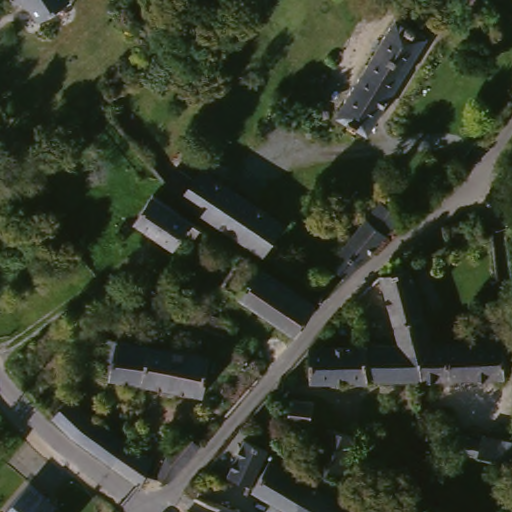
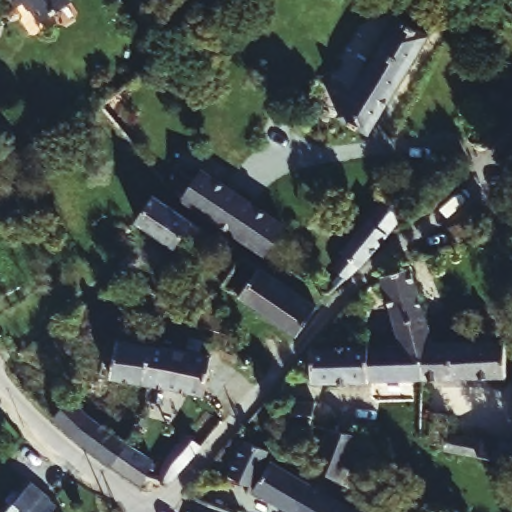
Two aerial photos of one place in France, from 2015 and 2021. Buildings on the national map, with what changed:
unchanged [(22,1),(22,0),(24,0),(22,1)]
unchanged [(33,0),(68,0),(44,16),(33,0)]
unchanged [(333,113),(396,13),(406,20),(411,13),(420,19),(416,26),(425,32),(363,132),(333,113)]
unchanged [(182,192),(167,181),(180,164),(195,174),(200,166),(202,163),(285,220),(267,251),(229,225),(182,192)]
unchanged [(195,236),(183,228),(174,241),(136,214),(153,190),(202,225),(195,236)]
unchanged [(333,264),(345,250),(341,246),(382,196),(402,213),(390,228),(384,235),(364,255),(345,274),(333,264)]
unchanged [(472,231),(446,239),(442,225),(468,217),(472,231)]
unchanged [(224,279),(242,248),(320,303),(299,332),(224,279)]
unchanged [(426,340),(406,340),(384,269),(411,263),(436,340),(426,340)]
unchanged [(135,318),(132,317),(119,308),(133,284),(149,294),(135,318)]
unchanged [(217,343),(191,336),(173,331),(167,329),(166,332),(149,326),(157,298),(175,303),(174,307),(224,323),(217,343)]
unchanged [(169,350),(172,334),(173,331),(191,336),(191,340),(189,353),(204,356),(199,395),(141,387),(139,386),(142,347),(169,350)]
unchanged [(436,340),(503,339),(508,375),(427,376),(426,340),(436,340)]
unchanged [(406,340),(426,340),(427,376),(371,377),(370,341),(406,340)]
unchanged [(370,341),(371,377),(308,378),(311,345),(370,341)]
unchanged [(104,381),(104,378),(107,342),(142,347),(139,386),(104,381)]
unchanged [(111,461),(71,430),(48,405),(67,387),(85,408),(126,439),(155,460),(139,483),(111,461)]
unchanged [(313,422),(290,419),(294,396),(317,398),(313,422)]
unchanged [(443,409),(442,427),(475,435),(477,429),(510,438),(511,438),(505,459),(502,458),(440,437),(438,436),(438,430),(424,429),(426,408),(443,409)]
unchanged [(360,427),(340,479),(319,468),(313,465),(312,464),(326,419),(360,427)]
unchanged [(157,475),(161,465),(169,450),(185,428),(200,441),(167,480),(157,475)]
unchanged [(251,480),(230,472),(249,438),(268,445),(251,480)]
unchanged [(254,484),(267,457),(308,480),(333,493),(366,512),(301,512),(292,507),(254,484)]
unchanged [(351,493),(340,485),(342,480),(347,470),(352,458),(364,464),(351,493)]
unchanged [(47,500),(47,512),(0,512),(0,511),(29,482),(47,500)]

